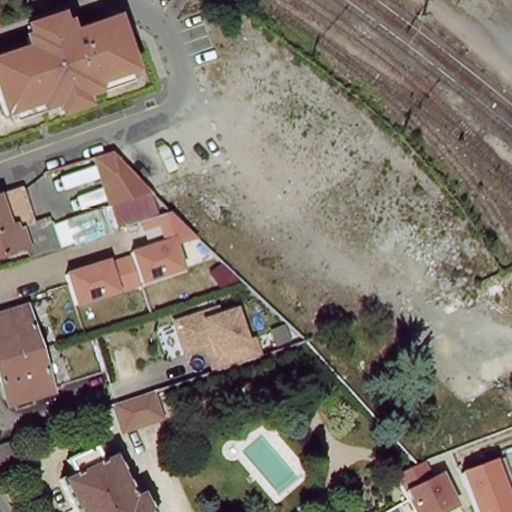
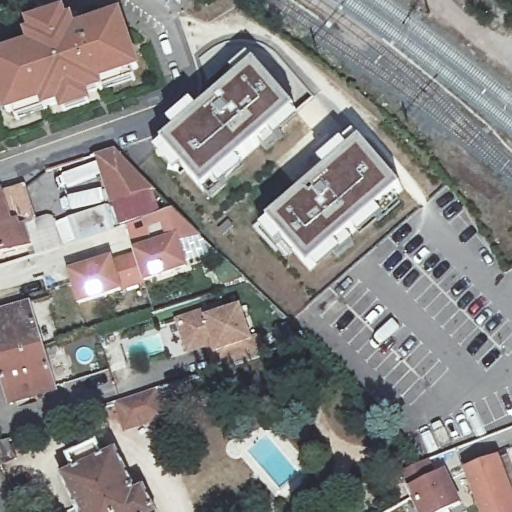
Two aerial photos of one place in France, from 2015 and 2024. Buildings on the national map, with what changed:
unchanged [(16,10),(13,0),(33,0),(35,4),(16,10)]
unchanged [(137,69),(141,79),(105,92),(107,103),(53,119),(51,115),(18,126),(18,119),(5,122),(0,108),(0,49),(29,41),(23,17),(66,2),(72,24),(119,4),(121,13),(131,10),(150,64),(137,69)]
new [(251,55),(291,102),(201,180),(160,133),(251,55)]
new [(358,133),(398,179),(306,258),(266,212),(358,133)]
unchanged [(120,152),(153,191),(160,215),(118,231),(110,206),(95,159),(120,152)]
unchanged [(38,222),(15,229),(16,235),(28,232),(32,245),(21,248),(21,251),(0,257),(0,196),(27,188),(38,222)]
unchanged [(78,243),(70,219),(110,206),(118,231),(95,238),(78,243)]
unchanged [(28,232),(16,235),(15,229),(38,222),(56,217),(66,247),(61,249),(35,257),(32,245),(28,232)]
unchanged [(189,271),(143,285),(133,251),(179,238),(189,271)]
unchanged [(123,293),(78,306),(68,273),(113,259),(123,293)]
unchanged [(203,307),(208,318),(243,306),(253,338),(266,333),(273,357),(218,376),(210,348),(188,355),(181,318),(203,307)]
unchanged [(0,370),(0,324),(31,315),(45,357),(0,371),(0,370)]
unchanged [(45,357),(58,399),(14,413),(0,371),(45,357)]
unchanged [(125,433),(115,405),(158,391),(166,418),(125,433)]
unchanged [(10,442),(18,459),(1,469),(0,467),(0,445),(2,444),(10,441),(10,442)]
unchanged [(75,480),(69,467),(98,453),(105,466),(118,459),(138,500),(147,496),(156,512),(76,512),(63,486),(75,480)]
unchanged [(508,457),(512,470),(512,512),(480,512),(465,472),(508,457)]
unchanged [(417,512),(411,500),(414,498),(400,475),(430,461),(439,476),(447,471),(462,505),(449,512),(417,512)]

